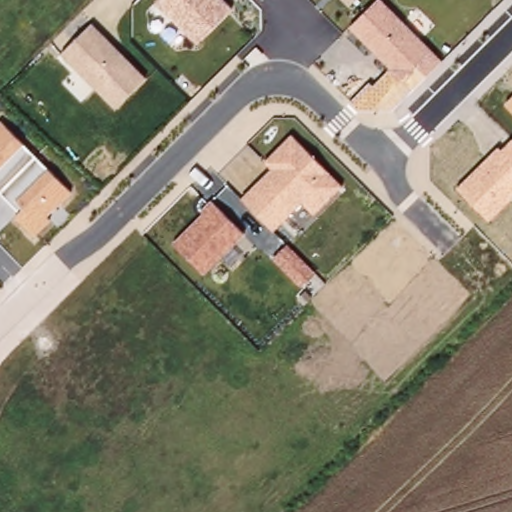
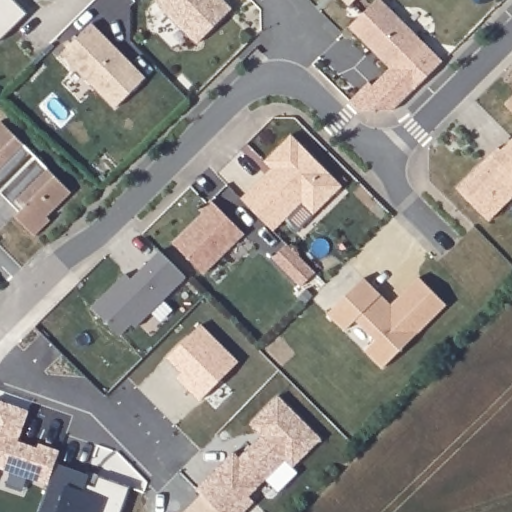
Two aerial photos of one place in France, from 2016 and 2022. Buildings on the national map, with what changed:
new [(33,16),(5,44),(0,40),(0,0),(17,0),(33,16)]
unchanged [(197,44),(157,2),(158,0),(218,0),(230,11),(197,44)]
unchanged [(348,6),(343,0),(355,0),(348,6)]
unchanged [(401,82),(350,28),(378,0),(385,0),(435,51),(401,82)]
unchanged [(115,112),(61,55),(92,24),(147,79),(115,112)]
unchanged [(401,82),(435,51),(443,61),(391,111),(360,111),(351,101),(371,82),(373,85),(388,69),(401,82)]
unchanged [(507,102),(512,98),(512,108),(507,102)]
unchanged [(0,201),(0,122),(2,120),(70,191),(32,233),(0,201)]
unchanged [(313,215),(302,203),(275,232),(243,201),(268,170),(262,162),(290,135),(343,187),(313,215)]
unchanged [(458,188),(498,147),(502,150),(512,140),(512,196),(488,218),(458,188)]
unchanged [(207,276),(174,243),(212,202),(245,235),(207,276)]
new [(291,245),(320,274),(305,288),(277,260),(291,245)]
new [(130,279),(158,252),(187,278),(134,328),(131,324),(121,334),(92,309),(126,275),(130,279)]
new [(366,279),(394,307),(422,279),(449,306),(385,370),(367,352),(378,341),(358,321),(347,332),(331,314),(366,279)]
new [(176,377),(182,370),(169,357),(201,324),(239,362),(199,400),(176,377)]
new [(293,466),(285,459),(250,494),(255,499),(243,512),(185,512),(202,494),(196,489),(235,450),(241,456),(262,435),(250,424),(278,396),(322,437),(293,466)]
new [(21,442),(39,447),(40,444),(60,449),(49,485),(25,479),(27,474),(0,467),(0,400),(29,410),(21,442)]
new [(92,476),(90,483),(99,486),(102,476),(135,487),(126,512),(43,512),(60,464),(92,476)]

